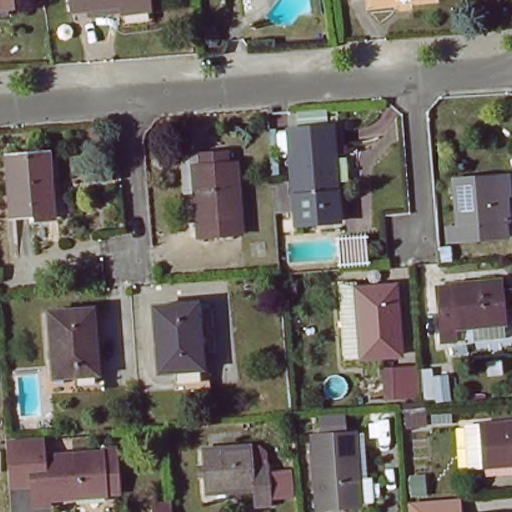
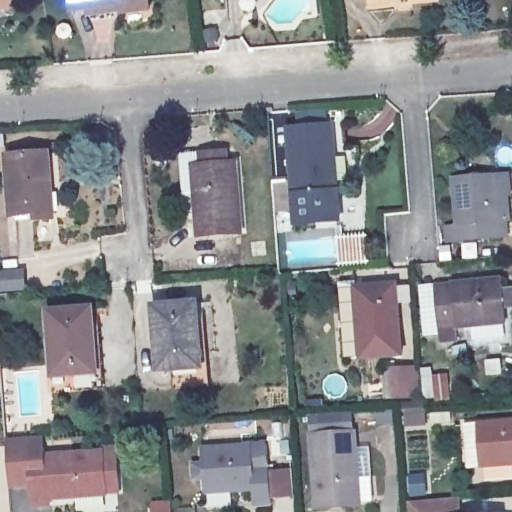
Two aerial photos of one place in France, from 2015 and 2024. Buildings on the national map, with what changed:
unchanged [(93,8),(74,10),(73,0),(151,0),(152,9),(125,13),(93,17),(93,8)]
unchanged [(335,124),(344,221),(301,224),(293,128),(335,124)]
unchanged [(234,162),(244,161),(250,235),(206,238),(203,192),(191,193),(188,155),(208,153),(233,151),(234,162)]
unchanged [(55,153),(58,186),(55,186),(58,220),(40,221),(39,215),(20,217),(14,157),(55,153)]
unchanged [(463,240),(458,177),(499,174),(512,173),(512,179),(512,218),(504,219),(505,237),(463,240)]
unchanged [(371,236),(374,263),(346,265),(344,238),(371,236)]
unchanged [(444,343),(443,329),(440,286),(506,281),(507,289),(512,289),(512,310),(508,310),(509,324),(505,325),(474,327),(457,328),(459,342),(444,343)]
unchanged [(359,291),(365,360),(353,361),(345,284),(365,282),(366,290),(359,291)]
unchanged [(359,291),(366,290),(398,288),(404,356),(365,360),(359,291)]
unchanged [(186,392),(185,371),(163,373),(156,309),(199,304),(205,369),(207,390),(186,392)]
unchanged [(80,384),(80,371),(56,373),(50,309),(95,306),(100,369),(101,383),(80,384)]
unchanged [(417,367),(419,398),(386,401),(383,370),(417,367)]
unchanged [(456,369),(458,396),(434,398),(432,371),(456,369)]
unchanged [(512,423),(512,468),(482,470),(478,426),(512,423)]
unchanged [(359,435),(366,507),(322,511),(316,439),(359,435)]
unchanged [(44,438),(45,459),(32,460),(34,486),(8,488),(6,440),(44,438)]
unchanged [(35,503),(34,486),(32,460),(45,459),(103,454),(103,458),(116,456),(118,494),(106,495),(106,497),(35,503)]
unchanged [(253,476),(265,475),(266,483),(274,482),(276,512),(257,512),(256,507),(211,509),(208,467),(253,463),(253,476)]

